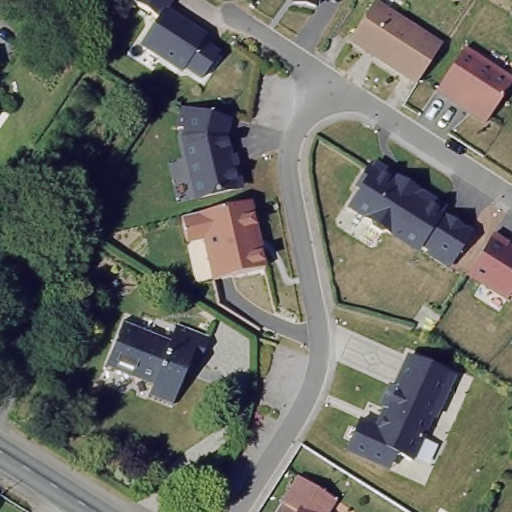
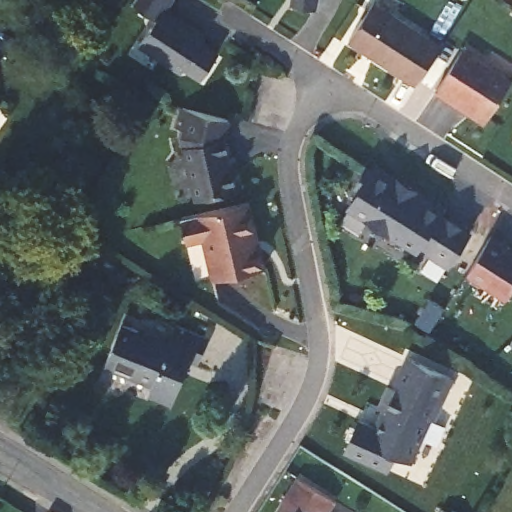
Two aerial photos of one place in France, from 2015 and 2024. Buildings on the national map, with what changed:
unchanged [(212,29),(207,38),(227,49),(206,78),(186,67),(183,71),(141,43),(158,13),(133,0),(173,0),(171,3),(212,29)]
unchanged [(294,5),(294,0),(320,0),(318,10),(294,5)]
unchanged [(373,1),(440,45),(415,84),(348,40),(373,1)]
unchanged [(462,49),(512,81),(485,122),(436,90),(462,49)]
unchanged [(0,68),(0,67),(1,67),(0,68)]
unchanged [(182,136),(184,129),(177,126),(182,106),(208,112),(229,118),(224,135),(231,166),(237,170),(240,180),(236,186),(236,189),(196,197),(182,136)]
unchanged [(452,207),(447,215),(471,229),(448,268),(419,249),(416,253),(347,206),(359,189),(354,185),(368,163),(374,167),(379,160),(452,207)]
unchanged [(253,202),(267,266),(211,280),(202,240),(188,243),(182,217),(253,202)]
unchanged [(472,265),(492,235),(507,245),(506,247),(512,251),(512,290),(507,298),(467,273),(472,265)]
unchanged [(193,357),(184,354),(167,397),(143,388),(147,378),(100,359),(116,318),(132,325),(131,327),(162,339),(170,320),(203,332),(193,357)]
unchanged [(457,374),(438,420),(434,418),(416,463),(397,457),(390,472),(345,453),(359,417),(370,421),(387,382),(392,383),(407,353),(457,374)]
unchanged [(330,500),(323,512),(291,512),(275,502),(292,476),(330,500)]

